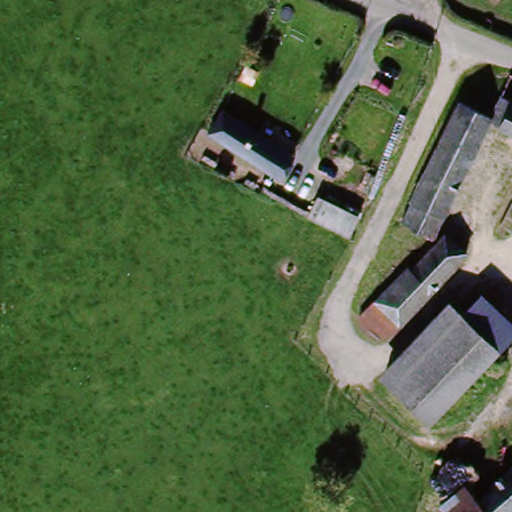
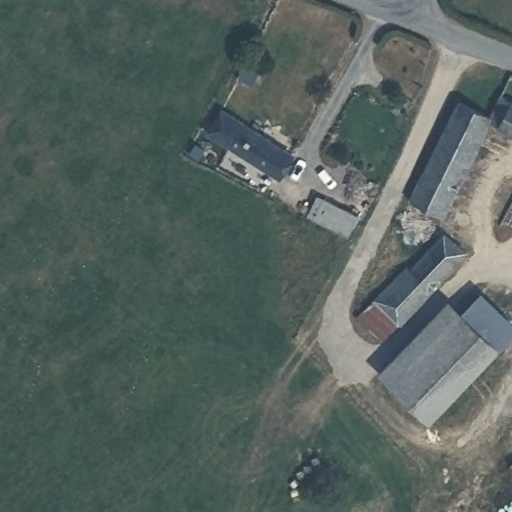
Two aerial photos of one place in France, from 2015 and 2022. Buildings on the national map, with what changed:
unchanged [(487,124),(491,118),(500,103),(512,110),(512,138),(487,124)]
unchanged [(289,155),(277,173),(208,132),(221,110),(289,155)]
unchanged [(462,110),(487,124),(432,234),(406,221),(462,110)]
unchanged [(372,203),(362,221),(302,188),(312,172),(372,203)]
unchanged [(432,234),(454,249),(440,268),(387,330),(378,343),(357,328),(367,314),(432,234)]
unchanged [(475,298),(512,328),(512,334),(504,345),(437,427),(397,394),(471,302),(475,298)]
unchanged [(469,512),(512,475),(512,512),(469,512)]

